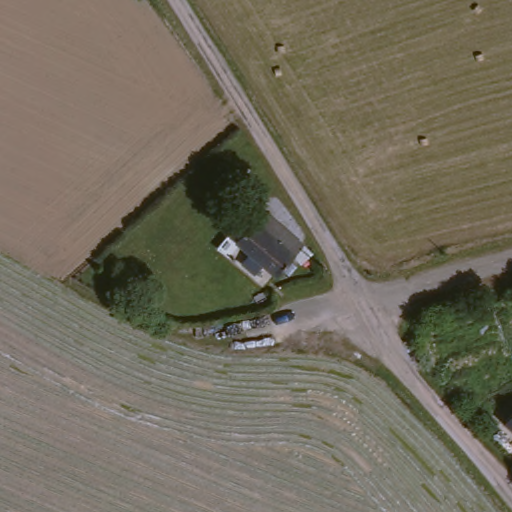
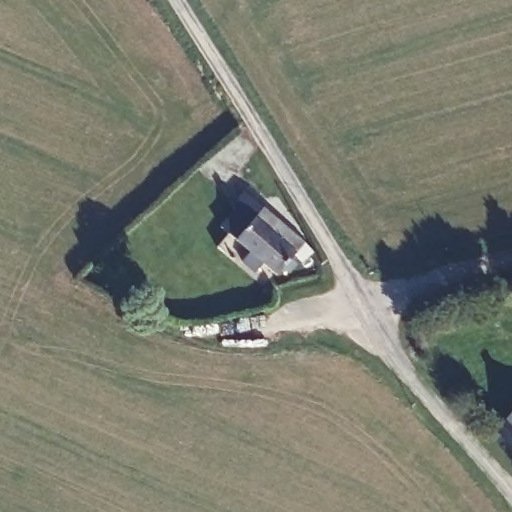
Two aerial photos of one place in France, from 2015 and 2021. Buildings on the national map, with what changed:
unchanged [(299,249),(281,272),(237,235),(256,212),(299,249)]
unchanged [(512,412),(512,434),(502,425),(512,412)]

